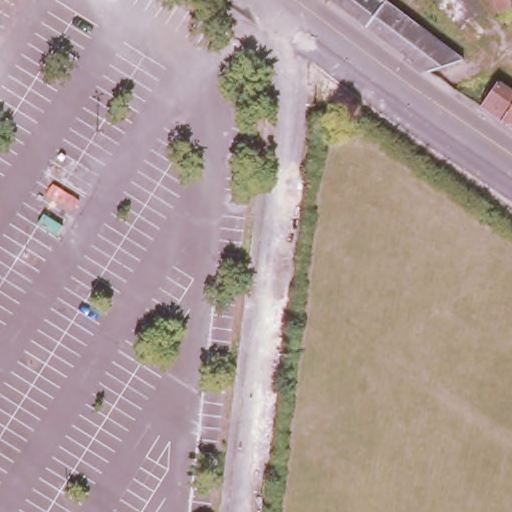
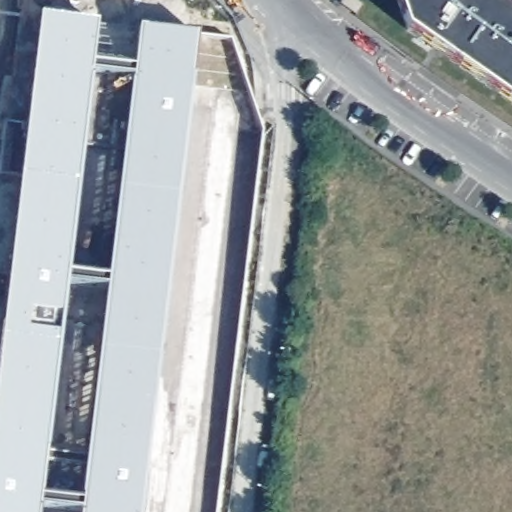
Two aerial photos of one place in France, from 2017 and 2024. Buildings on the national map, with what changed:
demolished [(442,41),(460,54),(425,64),(339,0),(389,0),(442,41)]
new [(512,10),(512,103),(407,29),(397,0),(498,0),(512,10)]
demolished [(511,0),(499,7),(495,0),(512,0),(511,0)]
new [(92,64),(132,69),(138,30),(196,38),(192,79),(193,79),(140,512),(0,512),(0,329),(18,184),(0,179),(0,141),(2,124),(25,131),(39,18),(97,25),(92,64)]
demolished [(512,129),(477,106),(494,80),(512,92),(512,129)]

